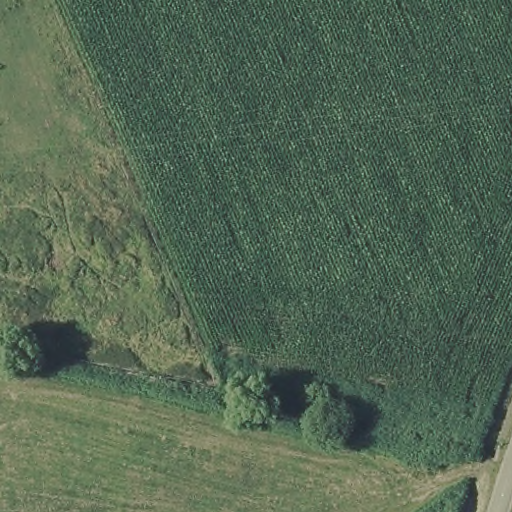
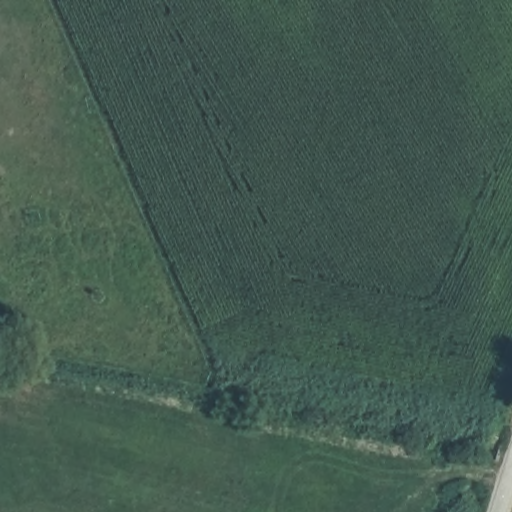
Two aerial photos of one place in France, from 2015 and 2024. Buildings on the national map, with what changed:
[]

